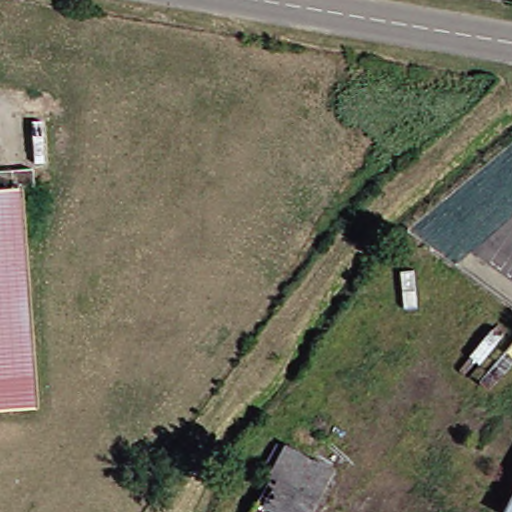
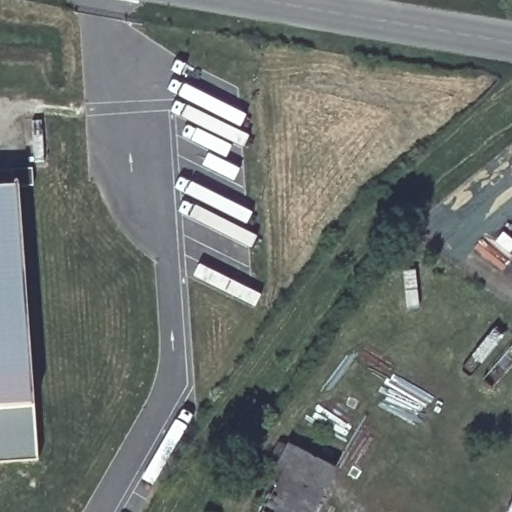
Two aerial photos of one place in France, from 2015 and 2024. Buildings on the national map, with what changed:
unchanged [(23,191),(26,278),(31,365),(33,409),(0,411),(0,192),(23,191)]
new [(0,463),(0,411),(33,409),(38,461),(0,463)]
unchanged [(256,512),(290,446),(339,471),(318,512),(256,512)]
new [(512,512),(508,512),(512,505),(512,512)]

